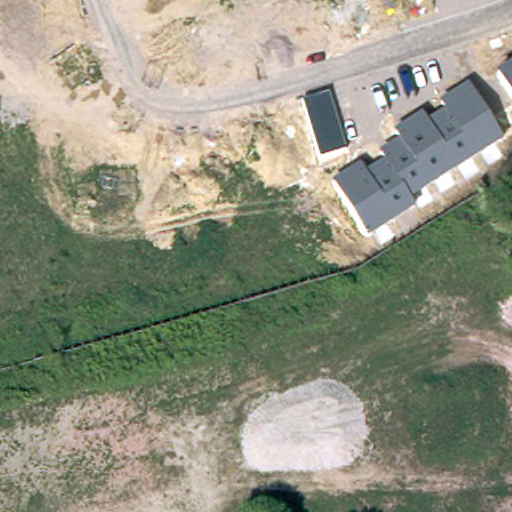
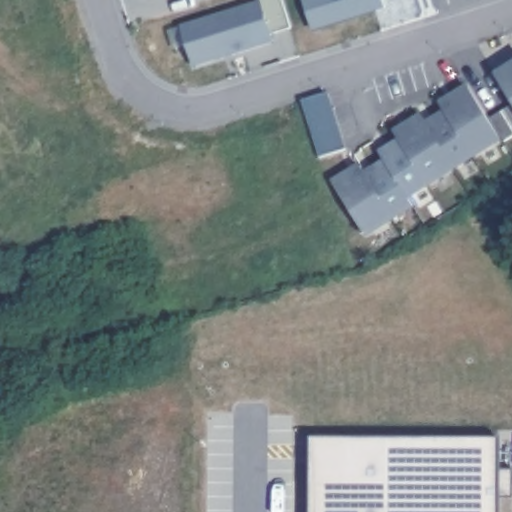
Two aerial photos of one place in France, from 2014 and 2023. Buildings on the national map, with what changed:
new [(282,0),(290,27),(270,33),(274,42),(193,67),(179,25),(259,1),(259,0),(282,0)]
new [(312,29),(303,0),(383,0),(385,7),(312,29)]
unchanged [(512,64),(512,101),(494,74),(512,64)]
unchanged [(503,141),(411,199),(416,207),(369,237),(333,182),(361,165),(365,171),(384,160),(379,151),(399,139),(394,130),(423,114),(428,122),(443,113),(438,102),(467,85),(503,141)]
unchanged [(330,95),(347,151),(319,160),(302,102),(330,95)]
new [(499,471),(512,471),(512,500),(501,500),(500,512),(317,512),(318,437),(499,440),(499,471)]

